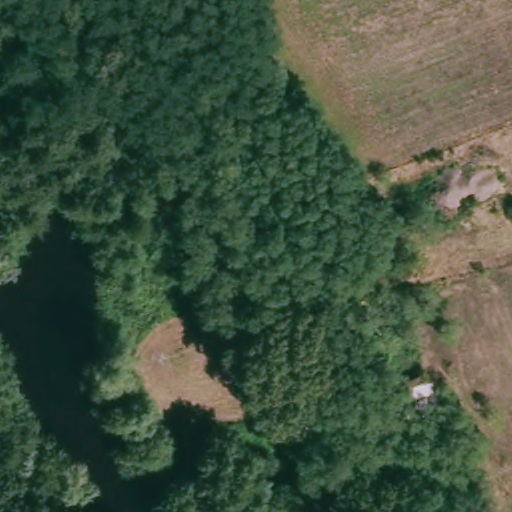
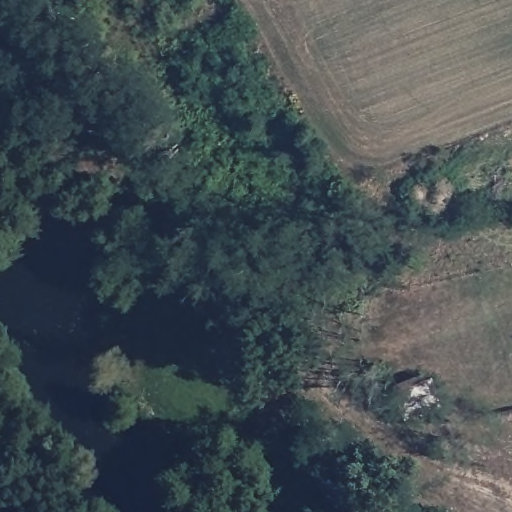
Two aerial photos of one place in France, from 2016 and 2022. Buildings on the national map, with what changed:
unchanged [(439,376),(449,407),(409,422),(398,389),(439,376)]

